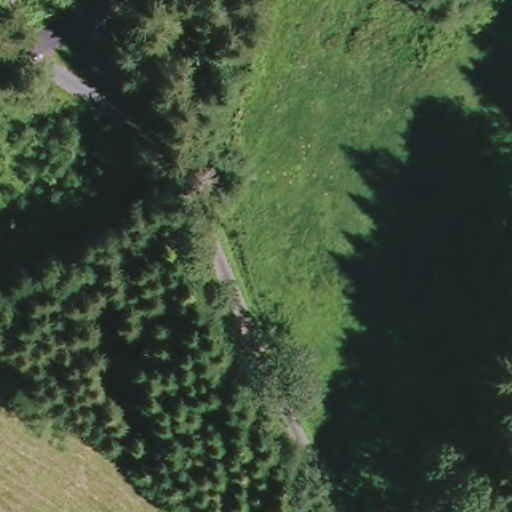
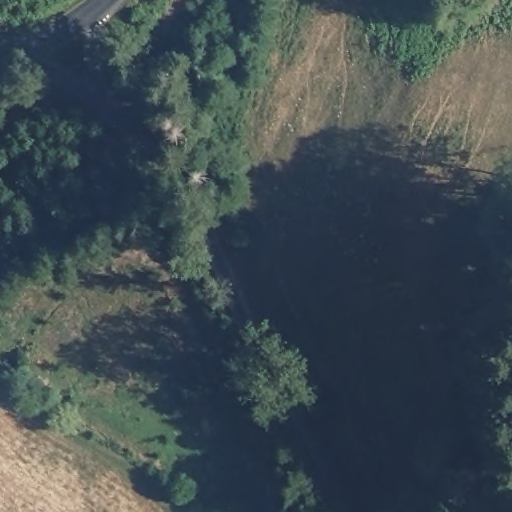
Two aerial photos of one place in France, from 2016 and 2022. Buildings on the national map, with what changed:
[]

